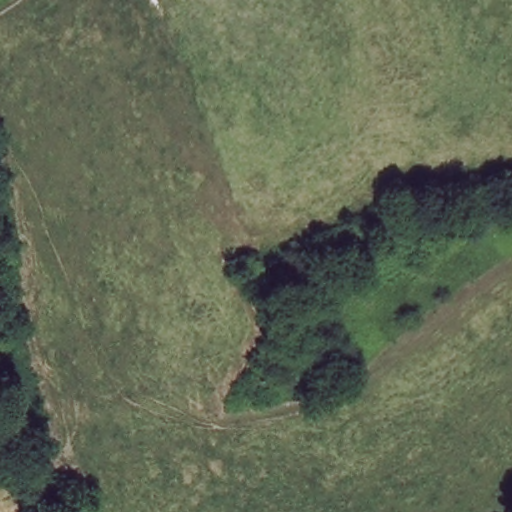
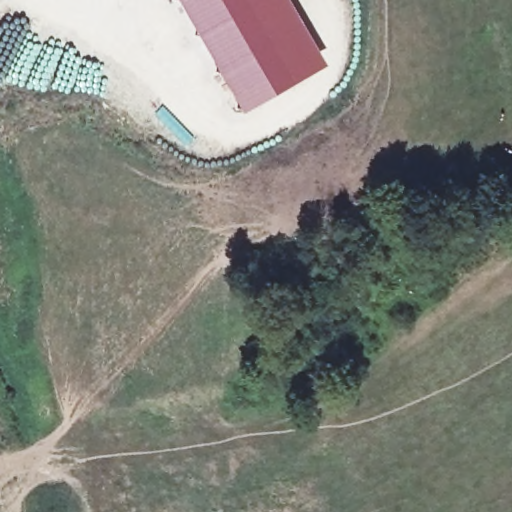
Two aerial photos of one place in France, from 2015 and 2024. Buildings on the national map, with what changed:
new [(179,0),(288,0),(326,68),(243,114),(179,0)]

